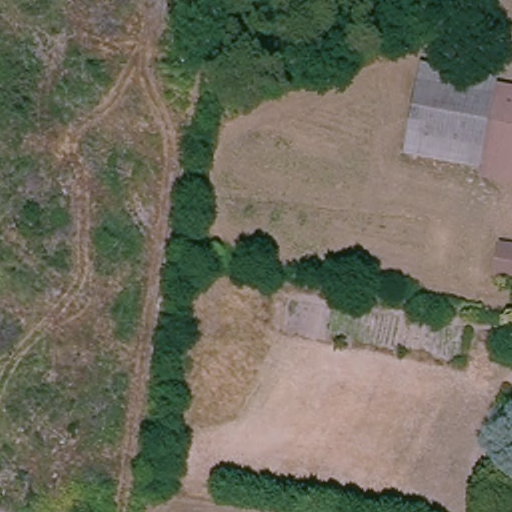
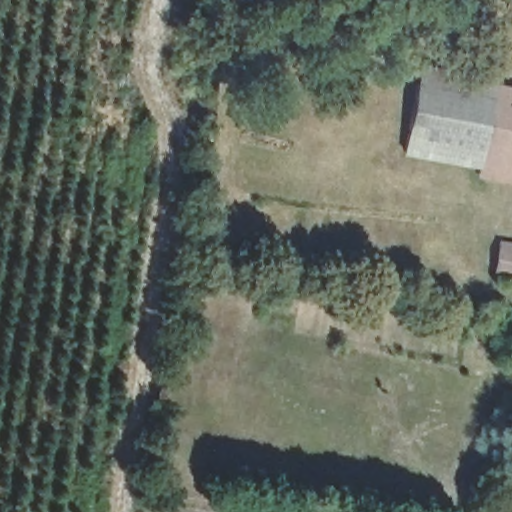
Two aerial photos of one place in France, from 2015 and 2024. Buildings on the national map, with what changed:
unchanged [(481,171),(482,162),(404,145),(417,77),(495,92),(497,82),(512,85),(512,177),(481,171)]
unchanged [(499,283),(504,241),(512,242),(512,286),(499,283)]

